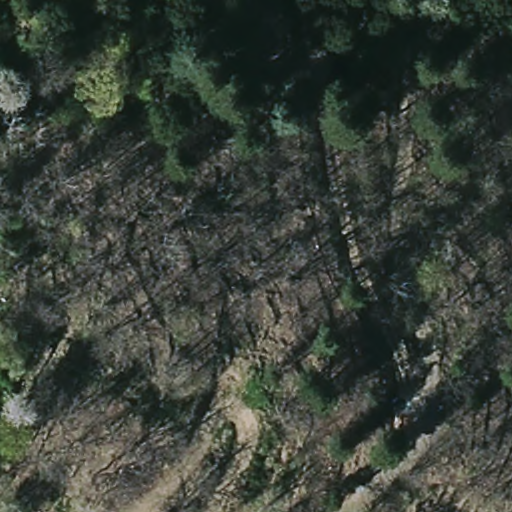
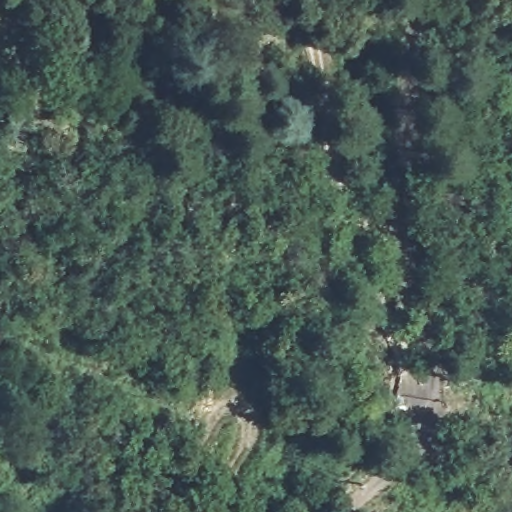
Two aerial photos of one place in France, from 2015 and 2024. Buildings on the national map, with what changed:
[]

